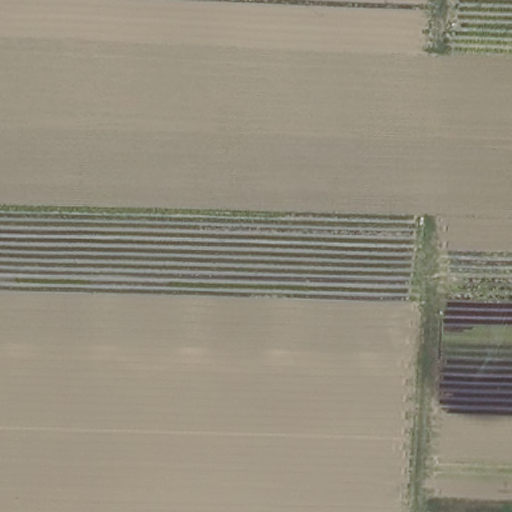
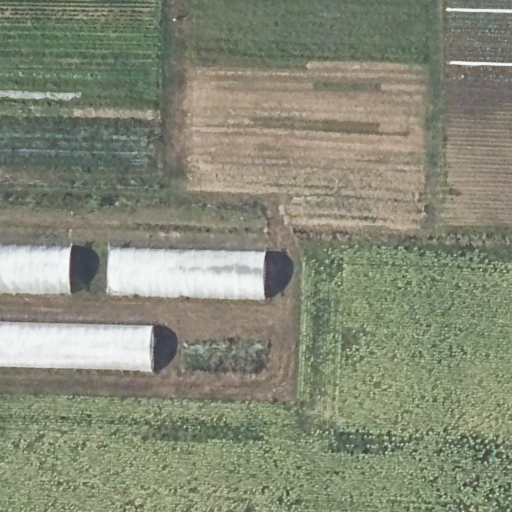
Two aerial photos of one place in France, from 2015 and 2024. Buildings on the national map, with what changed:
new [(71,293),(0,292),(0,245),(72,246),(71,293)]
new [(264,300),(109,295),(110,248),(266,252),(264,300)]
new [(150,368),(0,365),(0,321),(150,325),(150,368)]

